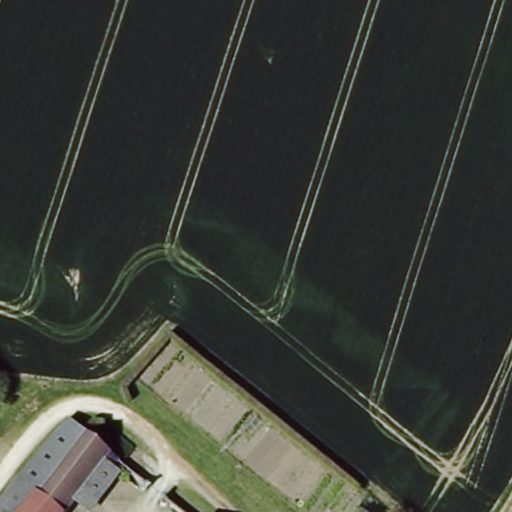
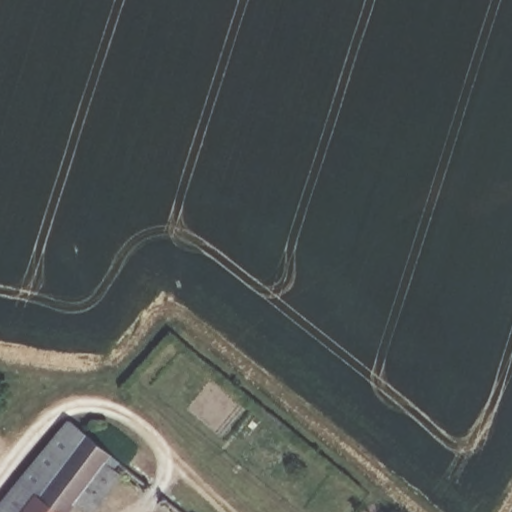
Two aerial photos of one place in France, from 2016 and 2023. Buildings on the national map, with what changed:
unchanged [(64,424),(115,464),(76,512),(0,512),(0,501),(64,424)]

